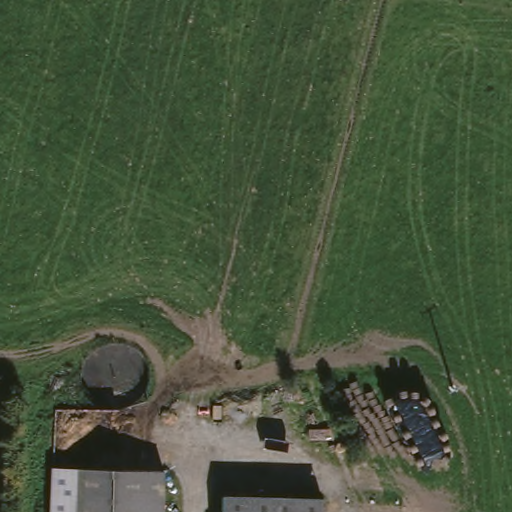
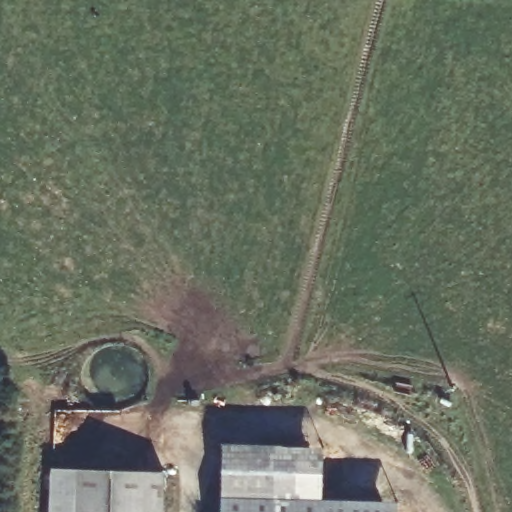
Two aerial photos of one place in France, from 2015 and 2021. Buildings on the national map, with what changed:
new [(221,498),(223,443),(322,447),(319,501),(221,498)]
unchanged [(54,475),(162,477),(161,512),(51,512),(54,475)]
unchanged [(319,501),(319,512),(221,512),(221,498),(319,501)]
new [(319,501),(399,505),(399,512),(319,512),(319,501)]

